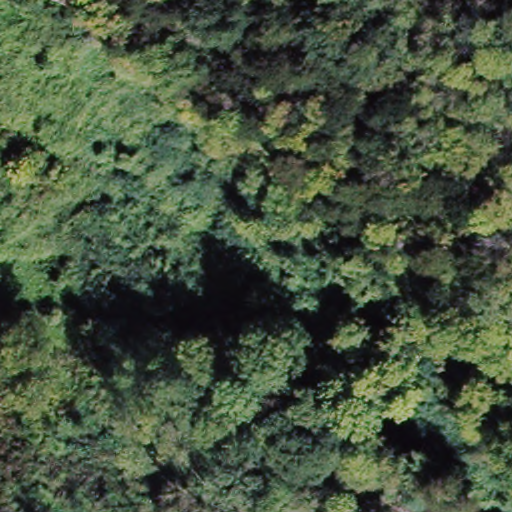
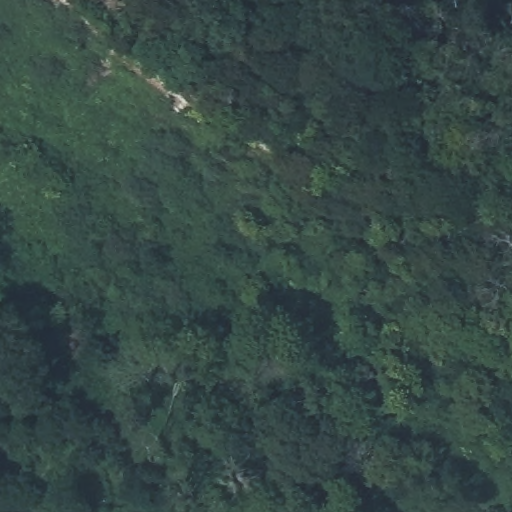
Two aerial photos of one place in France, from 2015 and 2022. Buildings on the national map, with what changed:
[]

